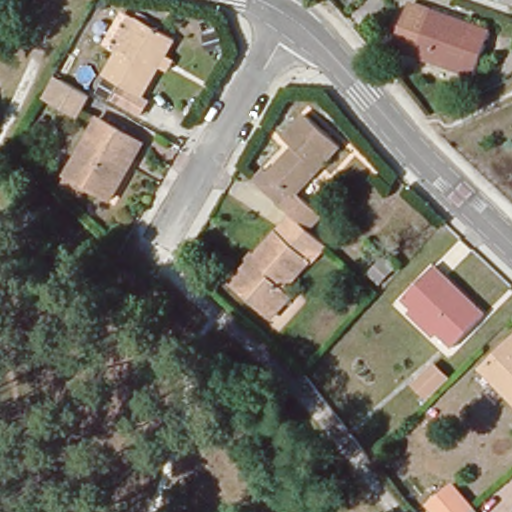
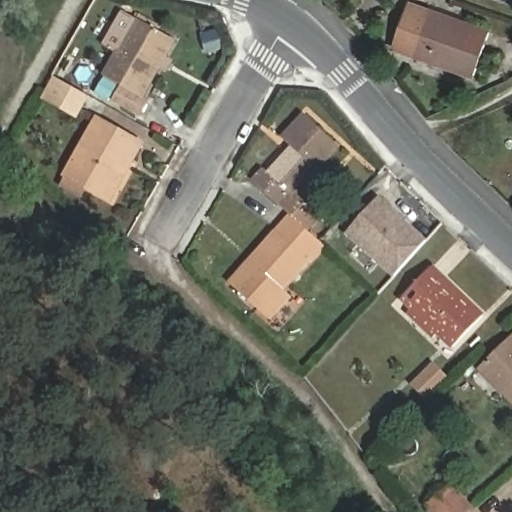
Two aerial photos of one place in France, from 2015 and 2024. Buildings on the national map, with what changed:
unchanged [(499,35),(482,84),(400,55),(413,5),(499,35)]
unchanged [(142,99),(104,79),(137,22),(173,44),(142,99)]
unchanged [(77,116),(52,101),(47,98),(58,80),(63,82),(89,97),(77,116)]
unchanged [(266,173),(272,178),(296,151),(287,142),(306,119),(341,149),(298,197),(321,220),(309,234),(294,221),(255,185),(266,173)]
unchanged [(63,189),(70,177),(102,122),(148,146),(114,204),(93,190),(87,202),(63,189)]
new [(395,277),(348,234),(381,196),(427,240),(395,277)]
unchanged [(309,234),(327,250),(290,293),(296,298),(275,322),(236,288),(294,221),(309,234)]
unchanged [(407,315),(412,308),(404,300),(429,273),(434,268),(446,280),(484,318),(455,350),(439,336),(434,341),(407,315)]
unchanged [(485,375),(512,347),(512,404),(485,375)]
unchanged [(454,487),(476,512),(433,512),(430,508),(454,487)]

